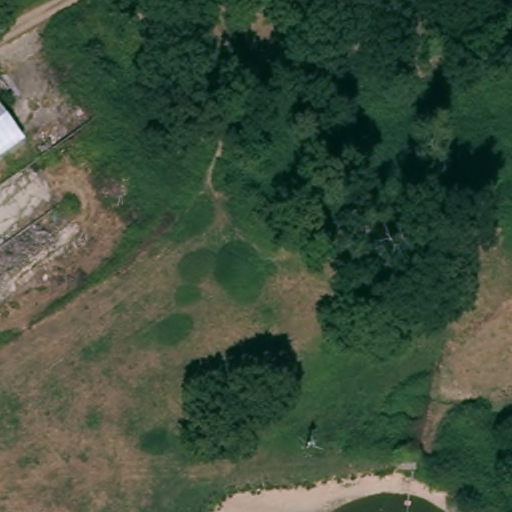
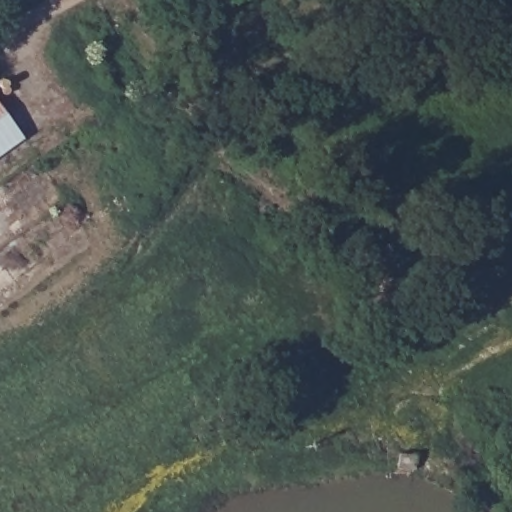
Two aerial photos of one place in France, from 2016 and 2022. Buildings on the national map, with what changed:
unchanged [(0,148),(0,107),(20,130),(0,148)]

